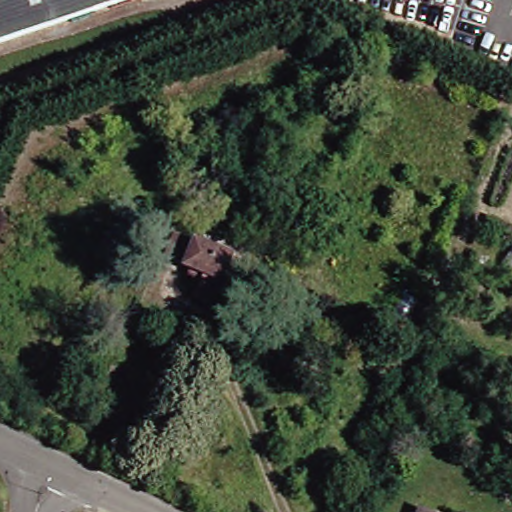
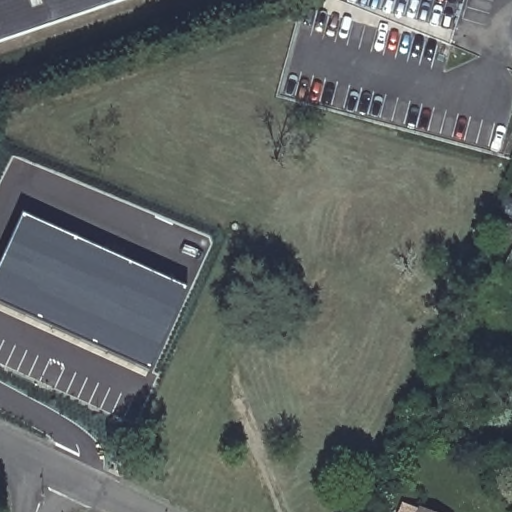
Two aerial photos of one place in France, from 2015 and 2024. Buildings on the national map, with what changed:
unchanged [(0,0),(117,0),(0,39),(0,0)]
new [(0,304),(0,257),(19,216),(184,288),(149,372),(0,304)]
unchanged [(213,303),(198,296),(205,278),(191,273),(194,265),(186,262),(195,239),(232,254),(213,303)]
unchanged [(429,512),(415,512),(418,507),(429,512)]

